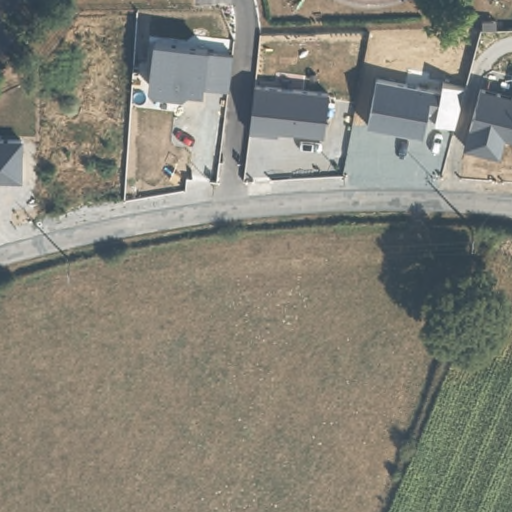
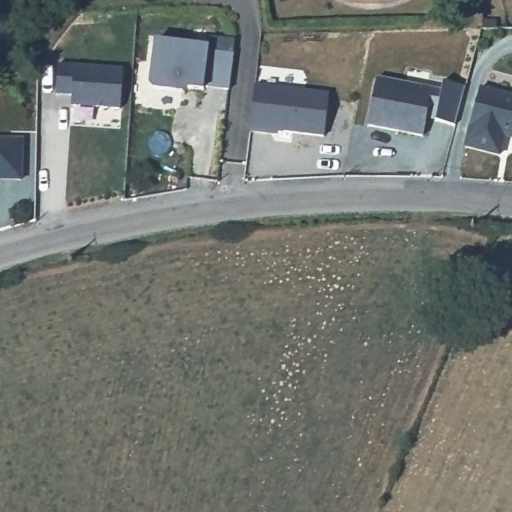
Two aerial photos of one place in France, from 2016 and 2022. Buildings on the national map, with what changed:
unchanged [(229,89),(208,89),(188,88),(182,93),(150,89),(155,41),(209,48),(232,54),(229,89)]
new [(119,110),(69,106),(70,96),(54,95),(57,64),(122,69),(119,110)]
unchanged [(453,126),(436,120),(426,119),(424,137),(367,126),(378,80),(441,91),(445,80),(463,86),(453,126)]
unchanged [(323,137),(252,130),(255,89),(328,94),(323,137)]
unchanged [(512,141),(504,139),(500,155),(465,146),(480,89),(512,95),(512,141)]
unchanged [(0,182),(0,145),(20,146),(22,182),(0,182)]

